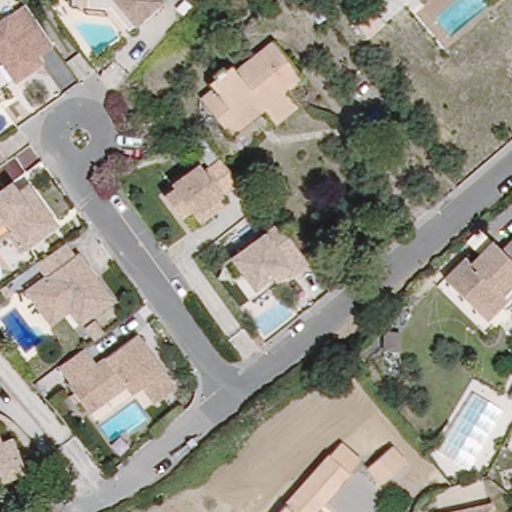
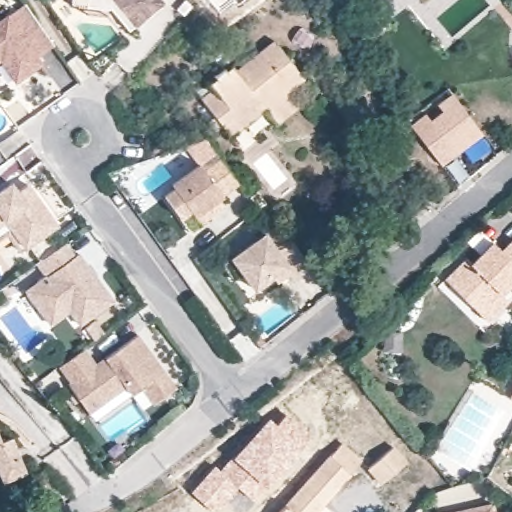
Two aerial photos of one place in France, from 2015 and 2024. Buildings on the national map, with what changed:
unchanged [(87,6),(73,5),(73,0),(87,0),(87,6)]
unchanged [(87,14),(87,7),(88,0),(160,0),(162,2),(142,19),(145,21),(136,28),(134,26),(128,31),(109,8),(108,9),(108,16),(87,14)]
demolished [(408,16),(404,10),(416,0),(418,0),(422,5),(408,16)]
unchanged [(419,5),(415,0),(425,0),(419,5)]
unchanged [(0,66),(0,26),(24,9),(53,50),(36,62),(41,68),(20,83),(15,87),(0,66)]
unchanged [(298,106),(276,125),(264,110),(231,137),(200,99),(214,88),(210,82),(216,77),(213,74),(222,67),(225,71),(231,66),(235,71),(274,40),(304,78),(287,92),(298,106)]
new [(427,114),(432,120),(444,111),(439,106),(454,93),(483,136),(441,167),(412,127),(427,114)]
unchanged [(200,223),(190,210),(180,217),(164,196),(174,189),(171,185),(199,165),(204,172),(221,160),(238,184),(218,199),(223,206),(215,212),(200,223)]
unchanged [(11,184),(17,192),(27,184),(57,225),(26,247),(6,220),(0,224),(0,192),(11,184)]
unchanged [(272,276),(254,288),(231,257),(279,223),(309,263),(293,275),(290,271),(276,282),(272,276)]
unchanged [(480,314),(468,302),(444,278),(466,257),(471,262),(493,241),(502,251),(512,240),(512,296),(487,321),(480,314)]
unchanged [(42,317),(27,296),(47,282),(38,269),(65,249),(74,262),(78,258),(113,306),(80,330),(69,315),(51,329),(42,317)]
unchanged [(176,387),(154,403),(142,387),(132,393),(126,386),(95,408),(93,407),(88,411),(68,385),(71,382),(60,367),(84,349),(95,365),(137,335),(176,387)]
new [(214,465),(219,468),(269,415),(276,421),(287,411),(313,434),(254,502),(237,488),(213,512),(190,492),(214,465)]
unchanged [(2,462),(0,457),(0,426),(5,438),(16,435),(23,453),(30,469),(8,477),(2,462)]
unchanged [(381,483),(367,468),(391,447),(393,446),(407,462),(404,463),(381,483)]
unchanged [(283,512),(341,448),(360,466),(318,512),(283,512)]
unchanged [(494,512),(449,512),(492,502),(494,512)]

